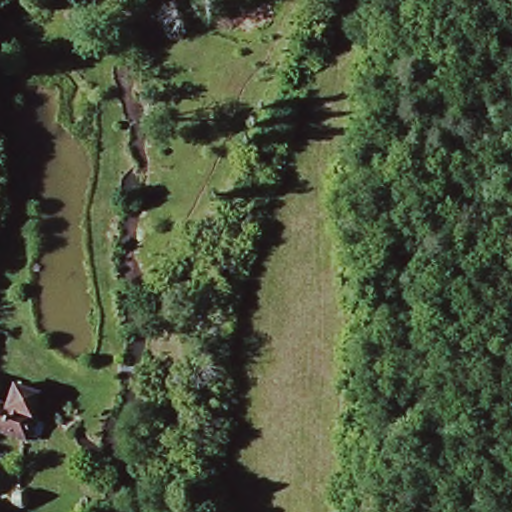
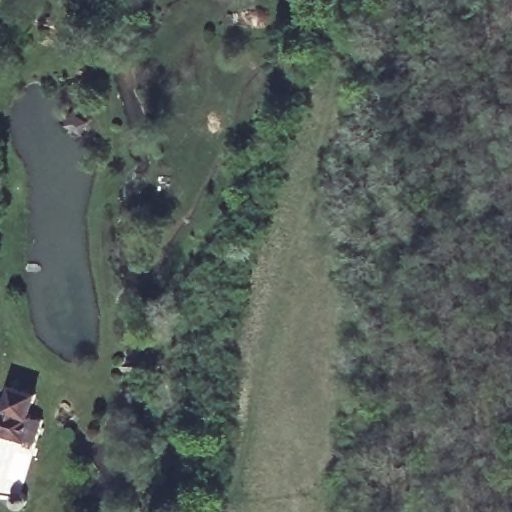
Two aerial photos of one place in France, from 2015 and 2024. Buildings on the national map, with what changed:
unchanged [(0,435),(0,412),(12,415),(15,403),(16,395),(39,401),(37,407),(33,421),(27,443),(0,435)]

